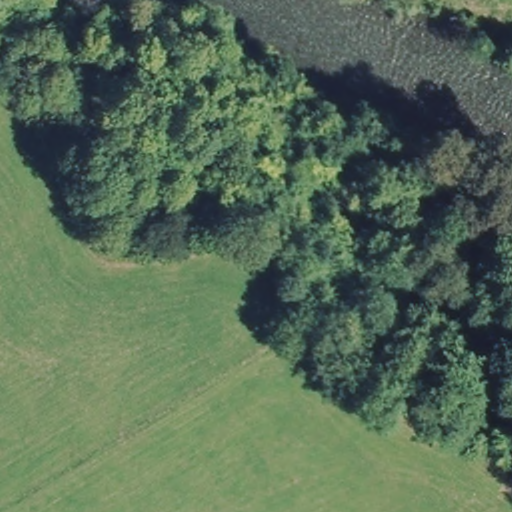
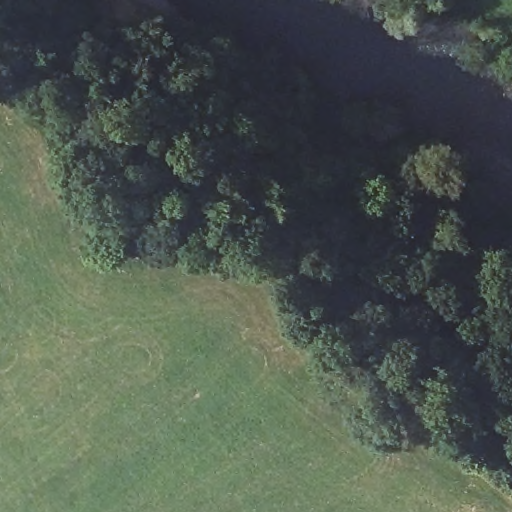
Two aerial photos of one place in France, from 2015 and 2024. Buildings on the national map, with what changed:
[]

